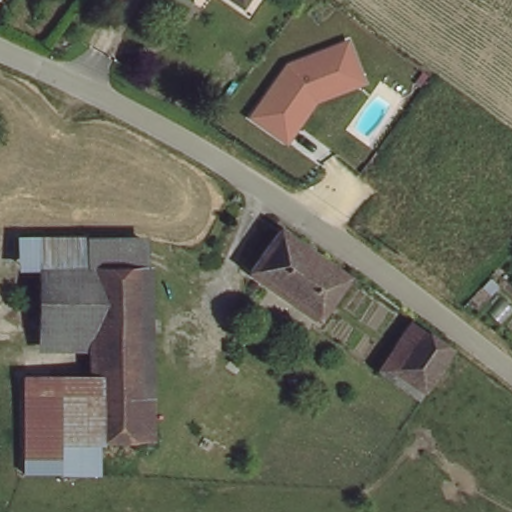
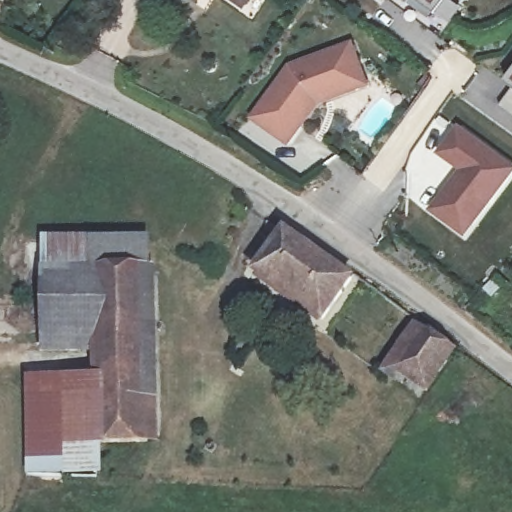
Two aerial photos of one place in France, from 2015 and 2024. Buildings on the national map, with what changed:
new [(409,4),(403,0),(412,0),(409,4)]
new [(436,13),(417,0),(446,0),(436,13)]
unchanged [(368,85),(320,104),(289,144),(252,120),(290,62),(352,41),(368,85)]
new [(506,83),(512,75),(512,87),(506,83)]
new [(500,106),(512,94),(512,114),(500,106)]
new [(464,237),(428,211),(458,171),(435,154),(457,126),(512,164),(512,174),(464,237)]
unchanged [(254,267),(282,229),(350,277),(323,317),(254,267)]
unchanged [(90,233),(142,232),(142,263),(90,264),(90,233)]
unchanged [(20,266),(19,235),(90,233),(90,264),(40,266),(20,266)]
unchanged [(92,375),(91,333),(90,264),(142,263),(143,288),(151,288),(152,303),(142,303),(143,317),(158,317),(159,332),(143,333),(146,438),(95,438),(92,375)]
unchanged [(91,333),(42,333),(40,266),(90,264),(91,333)]
unchanged [(380,367),(384,360),(411,322),(450,351),(423,388),(418,395),(380,367)]
unchanged [(61,471),(26,471),(23,374),(57,375),(61,471)]
unchanged [(95,438),(95,455),(98,455),(98,472),(61,471),(57,375),(92,375),(95,438)]

